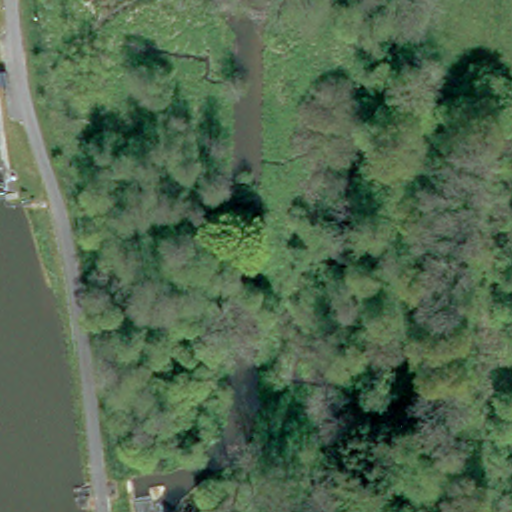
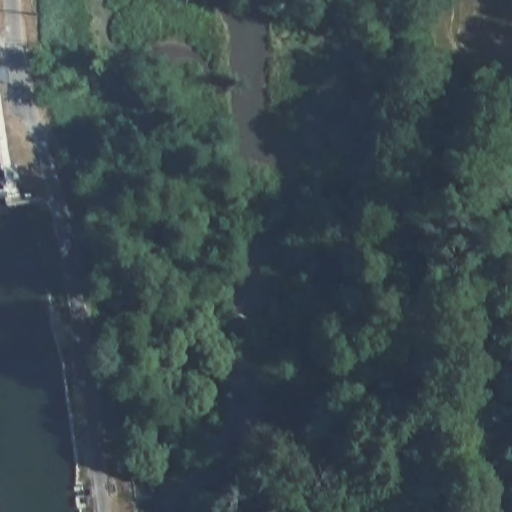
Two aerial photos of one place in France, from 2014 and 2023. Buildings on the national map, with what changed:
unchanged [(34,101),(33,91),(44,90),(45,100),(34,101)]

